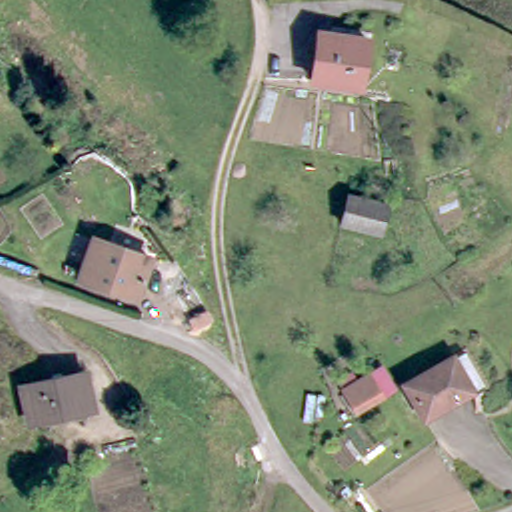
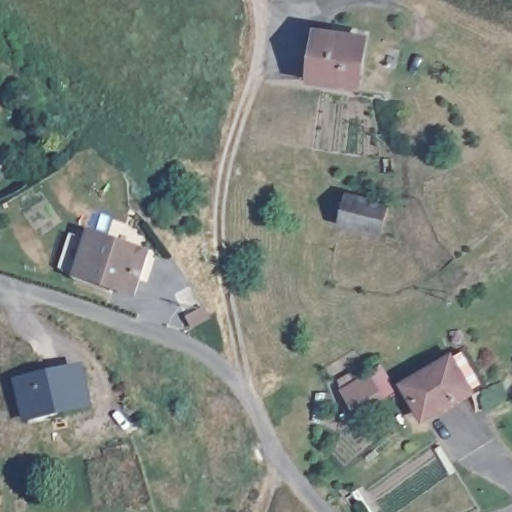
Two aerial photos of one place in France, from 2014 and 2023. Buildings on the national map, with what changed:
unchanged [(369,44),(363,93),(315,86),(322,37),(369,44)]
unchanged [(384,241),(344,230),(352,202),(392,212),(384,241)]
unchanged [(139,299),(81,279),(95,241),(153,262),(139,299)]
unchanged [(481,389),(422,423),(402,390),(462,357),(481,389)]
unchanged [(27,425),(19,387),(82,375),(90,413),(27,425)]
unchanged [(339,389),(350,384),(356,393),(369,386),(381,379),(393,400),(381,407),(355,422),(342,402),(346,399),(339,389)]

